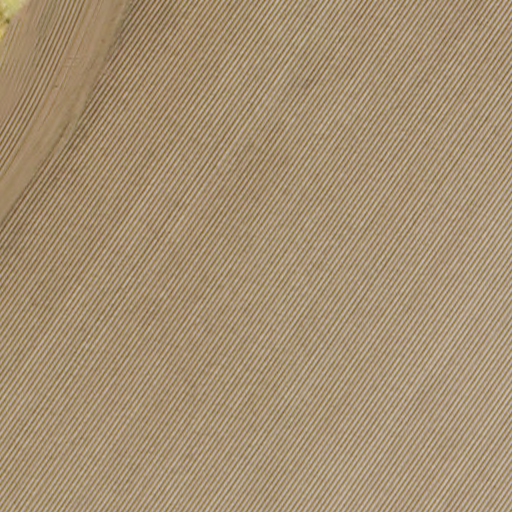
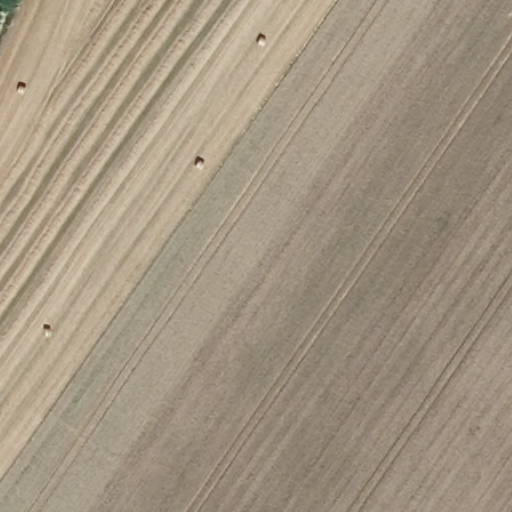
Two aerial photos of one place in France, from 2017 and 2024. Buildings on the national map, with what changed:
[]

